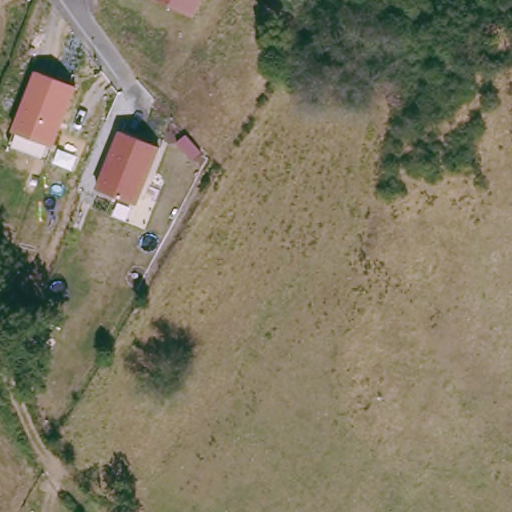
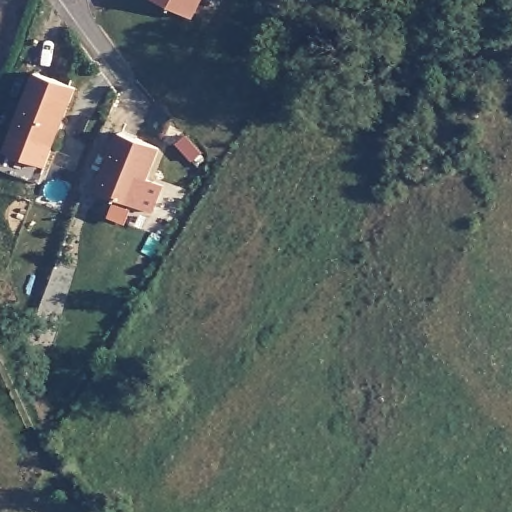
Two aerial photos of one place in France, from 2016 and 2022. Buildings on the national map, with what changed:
unchanged [(157,0),(205,0),(195,19),(157,0)]
unchanged [(55,151),(16,136),(40,76),(80,91),(55,151)]
unchanged [(98,192),(121,134),(160,150),(137,208),(98,192)]

